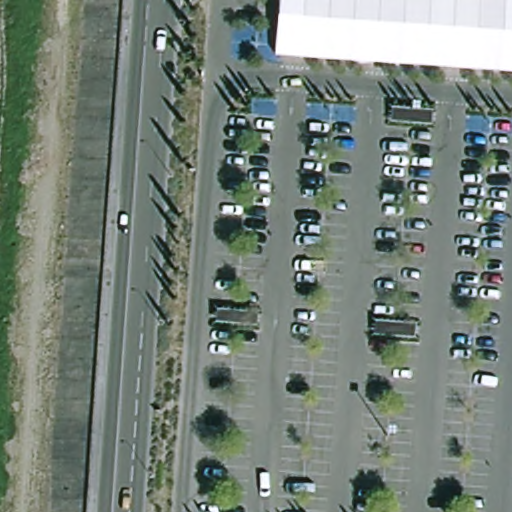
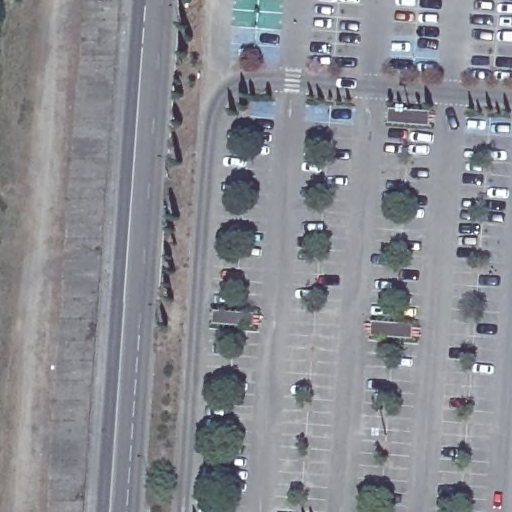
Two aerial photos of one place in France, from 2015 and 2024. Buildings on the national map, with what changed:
demolished [(322,60),(328,0),(503,0),(498,72),(322,60)]

